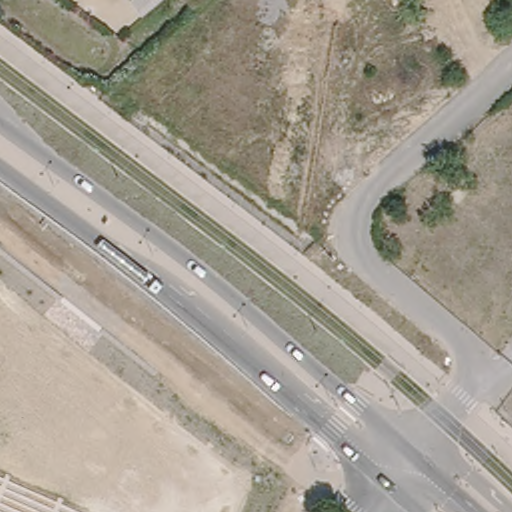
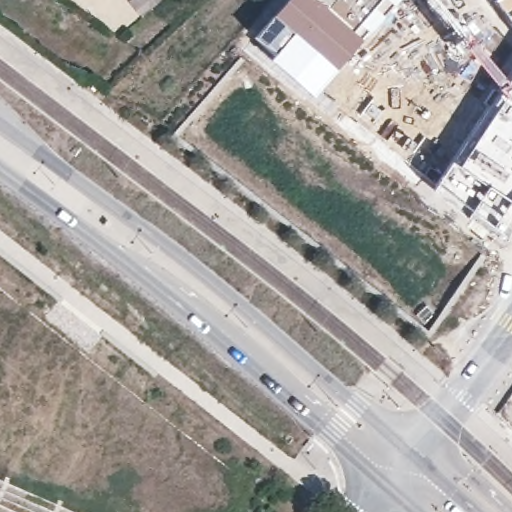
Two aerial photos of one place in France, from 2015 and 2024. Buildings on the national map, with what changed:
new [(253,38),(271,16),(286,0),(315,0),(351,31),(361,39),(335,70),(312,100),(268,60),(271,56),(270,55),(253,38)]
new [(351,31),(315,0),(396,0),(361,39),(351,31)]
new [(512,0),(512,9),(502,15),(492,1),(494,0),(512,0)]
new [(512,9),(512,29),(502,15),(512,9)]
new [(453,163),(455,160),(473,138),(498,99),(512,80),(512,218),(500,237),(465,215),(466,213),(431,188),(449,161),(453,163)]

